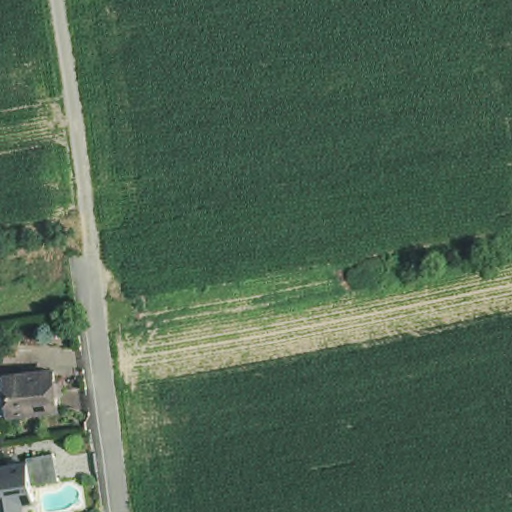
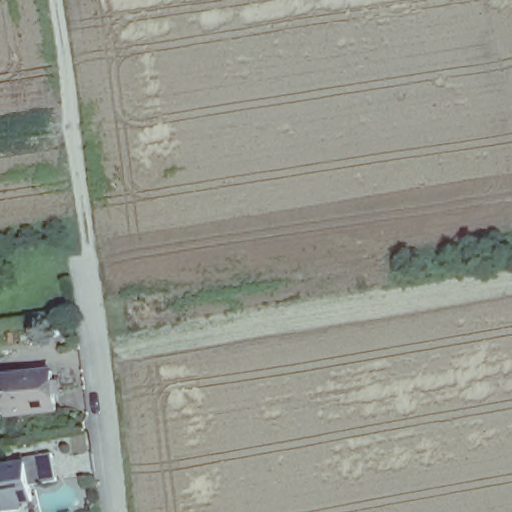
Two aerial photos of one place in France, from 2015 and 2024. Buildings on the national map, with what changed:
unchanged [(2,380),(2,376),(12,375),(28,373),(45,372),(47,397),(48,409),(34,411),(28,412),(7,414),(5,404),(2,380)]
unchanged [(35,504),(25,506),(25,512),(0,512),(0,464),(27,460),(35,504)]

